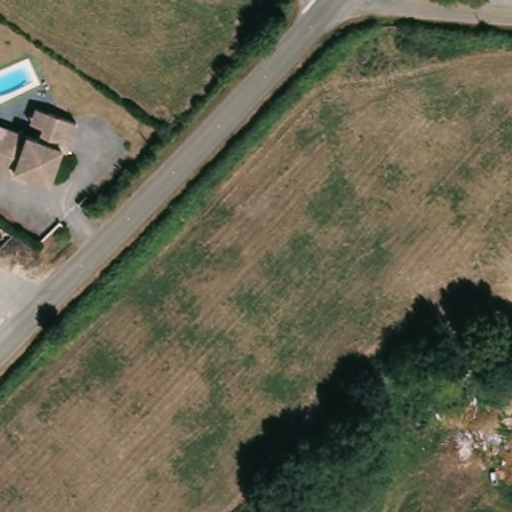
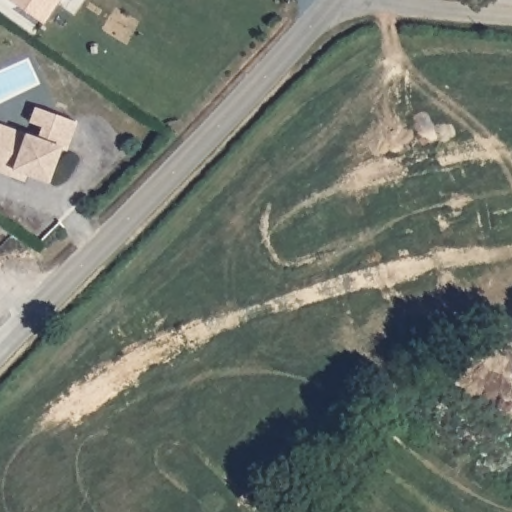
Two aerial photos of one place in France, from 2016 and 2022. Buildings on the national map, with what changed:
new [(6,0),(59,0),(44,24),(6,0)]
unchanged [(0,126),(4,117),(32,127),(44,131),(48,119),(36,114),(41,100),(54,104),(82,114),(72,142),(67,141),(55,175),(32,167),(31,172),(18,168),(0,161),(0,126)]

